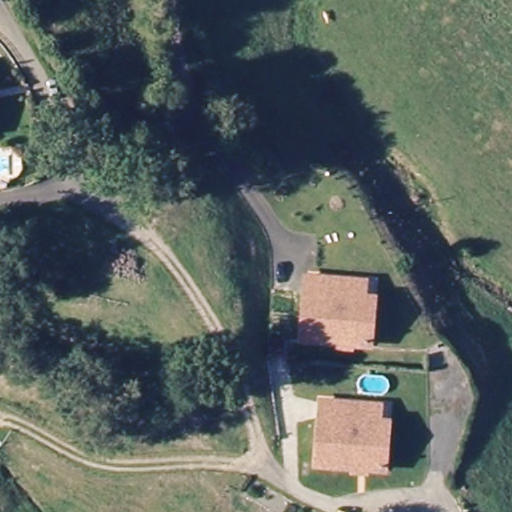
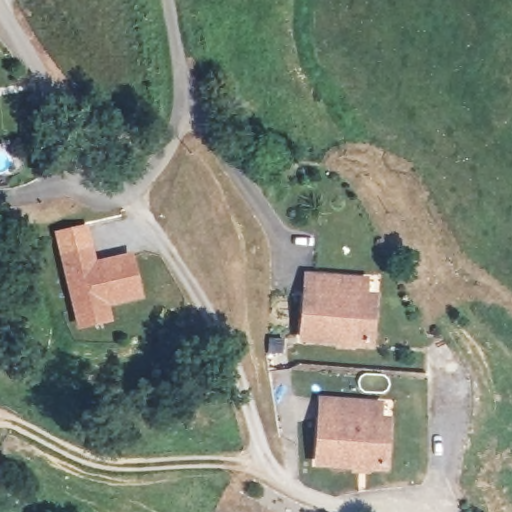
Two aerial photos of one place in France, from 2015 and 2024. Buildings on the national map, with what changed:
new [(143,298),(109,307),(113,324),(77,332),(60,254),(93,247),(96,261),(132,252),(143,298)]
unchanged [(368,349),(301,346),(304,284),(336,285),(361,286),(361,303),(370,303),(368,349)]
unchanged [(350,408),(375,409),(374,426),(384,426),(381,471),(348,470),(314,469),(316,428),(318,407),(350,408)]

